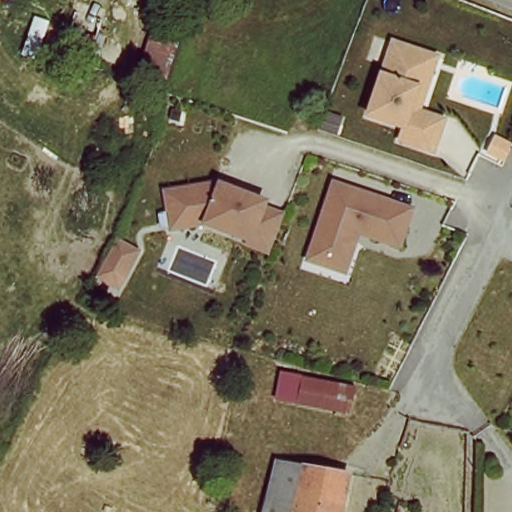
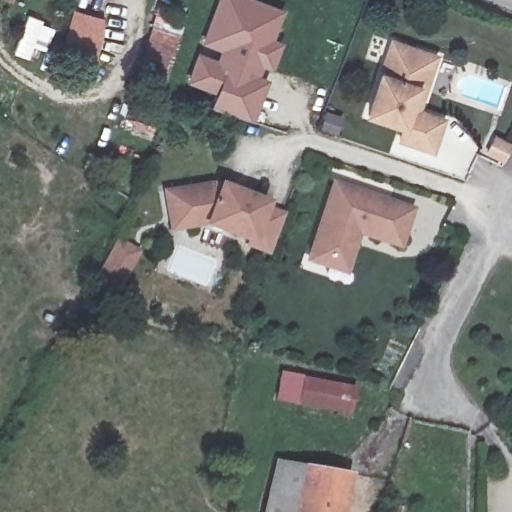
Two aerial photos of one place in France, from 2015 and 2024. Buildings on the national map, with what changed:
new [(252,121),(212,107),(217,92),(187,82),(199,53),(219,60),(223,49),(204,43),(219,0),(260,0),(285,9),(273,39),(283,44),(273,68),(262,64),(258,76),(268,80),(252,121)]
new [(98,59),(63,50),(74,10),(108,19),(98,59)]
unchanged [(141,67),(159,14),(186,23),(173,78),(141,67)]
unchanged [(430,152),(397,140),(402,128),(371,116),(398,43),(429,56),(435,59),(416,113),(441,122),(430,152)]
unchanged [(266,250),(202,224),(168,230),(163,188),(217,177),(272,200),(267,210),(280,213),(266,250)]
unchanged [(312,256),(314,250),(338,181),(415,209),(402,245),(361,230),(346,268),(312,256)]
unchanged [(123,288),(98,277),(113,238),(141,250),(123,288)]
unchanged [(283,374),(353,390),(346,415),(276,399),(283,374)]
unchanged [(343,476),(337,512),(260,512),(272,463),(343,476)]

